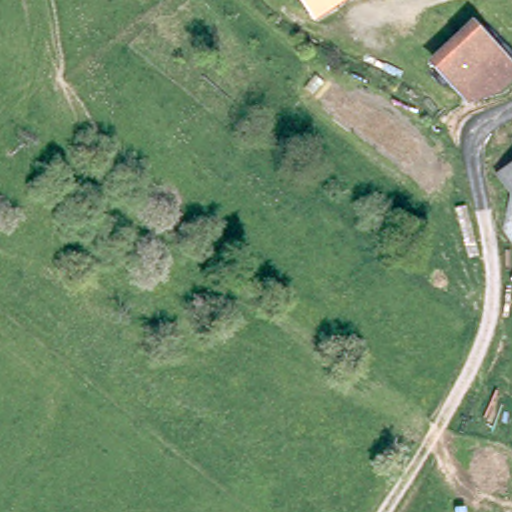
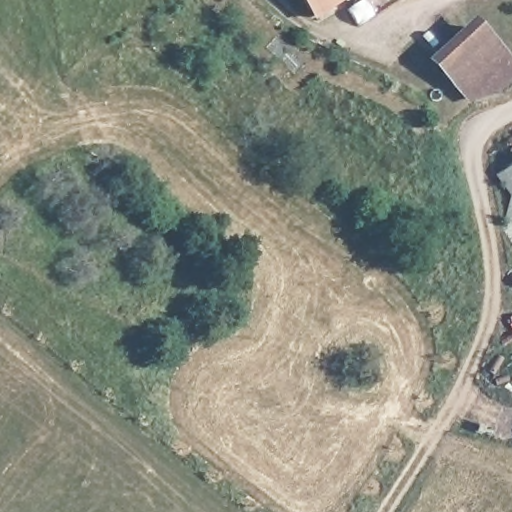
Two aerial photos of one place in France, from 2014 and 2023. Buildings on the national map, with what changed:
unchanged [(316,12),(309,0),(336,0),(316,12)]
unchanged [(469,29),(512,70),(479,101),(438,64),(469,29)]
unchanged [(512,164),(512,177),(506,169),(512,164)]

